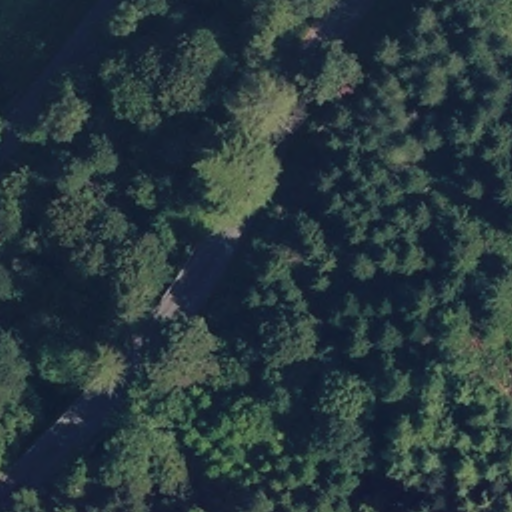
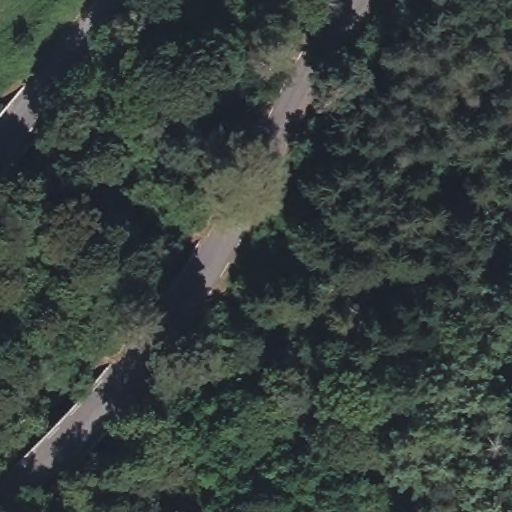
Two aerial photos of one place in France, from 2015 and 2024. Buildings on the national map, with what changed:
[]

